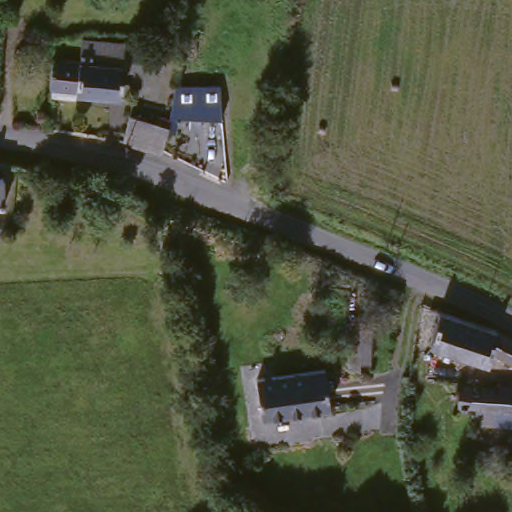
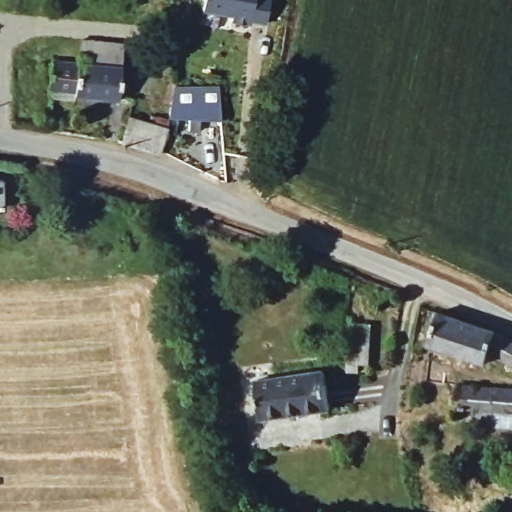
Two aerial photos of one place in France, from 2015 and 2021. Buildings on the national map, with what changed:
new [(269,0),(265,23),(250,19),(250,23),(231,19),(232,15),(202,9),(204,0),(269,0)]
unchanged [(83,56),(86,33),(128,39),(126,61),(122,94),(80,90),(79,95),(52,91),(57,55),(83,56)]
unchanged [(199,125),(199,114),(184,111),(179,132),(169,130),(174,113),(180,81),(221,84),(225,116),(211,115),(210,126),(199,125)]
unchanged [(125,136),(132,111),(150,116),(154,109),(174,113),(169,130),(162,150),(125,136)]
unchanged [(11,181),(11,208),(5,208),(3,216),(0,216),(0,181),(11,181)]
unchanged [(512,328),(512,355),(493,345),(490,353),(432,332),(442,302),(498,320),(512,328)]
unchanged [(354,308),(378,310),(374,373),(350,370),(354,308)]
unchanged [(332,406),(267,416),(263,374),(329,364),(332,406)]
unchanged [(512,384),(512,413),(501,413),(499,427),(481,426),(483,411),(461,406),(463,380),(512,384)]

